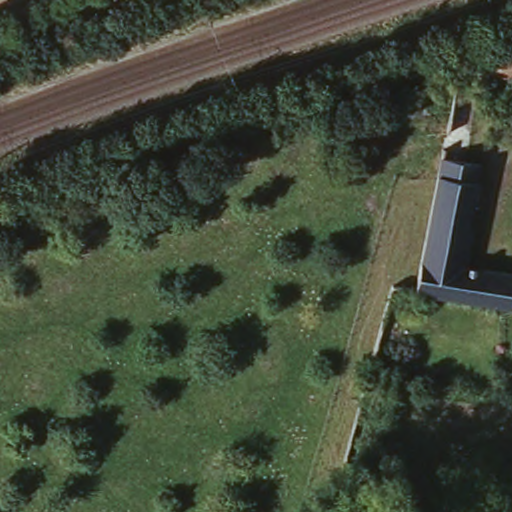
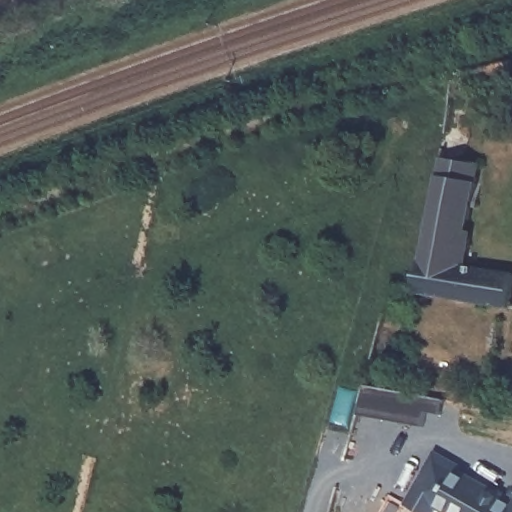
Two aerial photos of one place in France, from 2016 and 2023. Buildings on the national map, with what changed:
unchanged [(481,163),(458,267),(512,276),(512,305),(412,289),(441,155),(481,163)]
new [(512,503),(512,512),(420,512),(409,505),(438,460),(512,503)]

